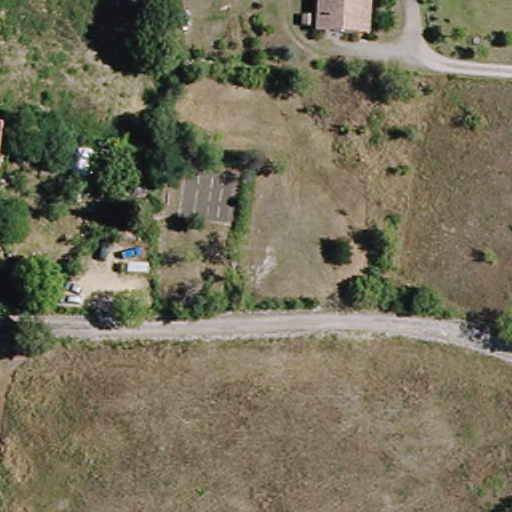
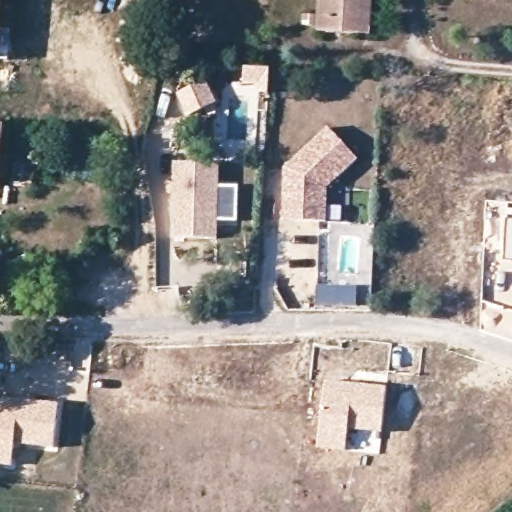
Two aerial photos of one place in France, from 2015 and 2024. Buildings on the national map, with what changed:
unchanged [(315,28),(316,0),(370,0),(369,34),(357,32),(315,28)]
unchanged [(10,125),(8,136),(1,135),(0,141),(0,124),(10,125)]
new [(357,161),(328,188),(326,224),(282,221),(285,165),(327,127),(357,161)]
new [(217,239),(171,237),(172,194),(167,193),(168,162),(220,163),(217,239)]
new [(506,261),(507,221),(512,221),(512,262),(506,261)]
new [(339,288),(338,303),(315,302),(316,286),(339,288)]
new [(323,380),(388,385),(382,434),(355,432),(350,432),(348,451),(316,448),(323,380)]
new [(60,401),(55,449),(15,444),(12,466),(0,465),(0,389),(60,401)]

